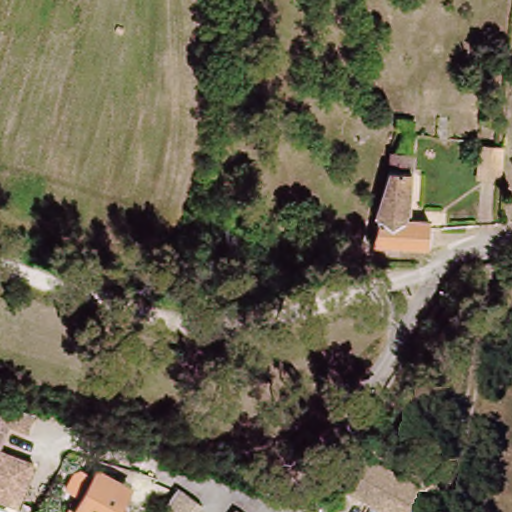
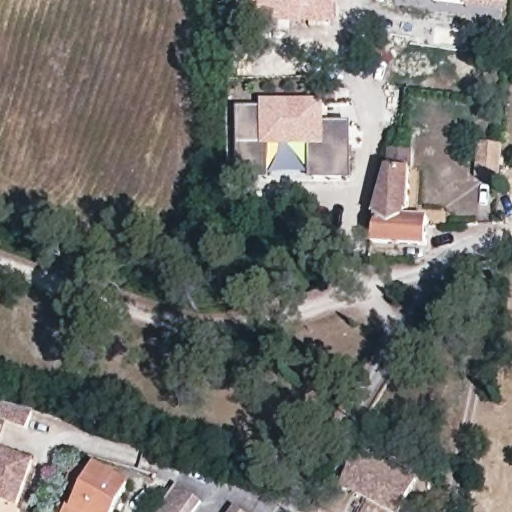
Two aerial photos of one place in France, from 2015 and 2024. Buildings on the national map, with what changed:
new [(338,24),(256,21),(254,0),(337,0),(338,24)]
new [(499,4),(466,0),(499,0),(499,4)]
new [(353,178),(311,179),(311,147),(273,148),(270,179),(240,176),(240,109),(263,109),(263,101),(326,102),(326,124),(352,122),(353,178)]
unchanged [(476,144),(490,144),(490,174),(475,174),(476,144)]
unchanged [(410,177),(407,226),(429,228),(428,237),(427,254),(371,251),(379,225),(374,225),(388,176),(393,157),(410,160),(410,177)]
unchanged [(38,400),(32,428),(12,424),(5,444),(37,454),(18,502),(0,495),(0,408),(3,396),(38,400)]
unchanged [(413,452),(408,462),(384,449),(387,438),(413,452)]
unchanged [(398,512),(383,512),(339,486),(357,452),(414,485),(398,512)]
unchanged [(117,512),(68,512),(75,498),(80,501),(102,461),(135,479),(117,512)]
unchanged [(201,501),(192,512),(156,512),(178,482),(201,501)]
unchanged [(244,512),(232,512),(236,506),(244,512)]

